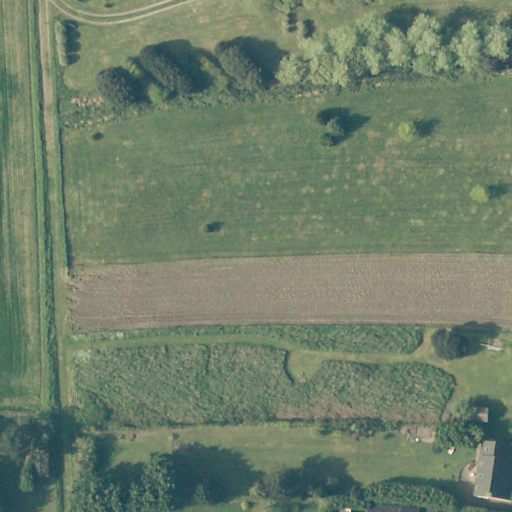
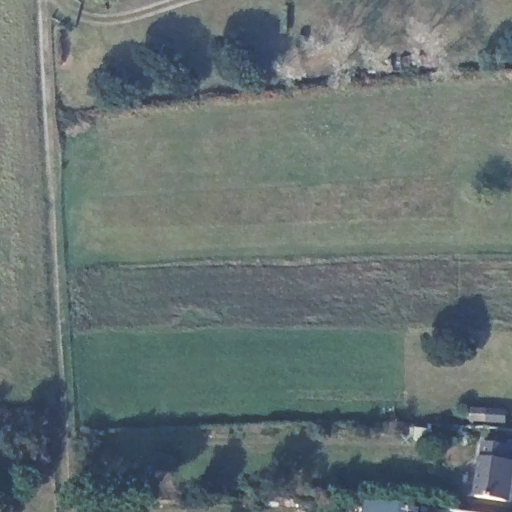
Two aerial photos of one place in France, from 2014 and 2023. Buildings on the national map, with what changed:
unchanged [(512,467),(512,489),(510,506),(475,502),(481,447),(512,451),(510,467),(512,467)]
unchanged [(364,512),(365,501),(398,503),(398,512),(364,512)]

